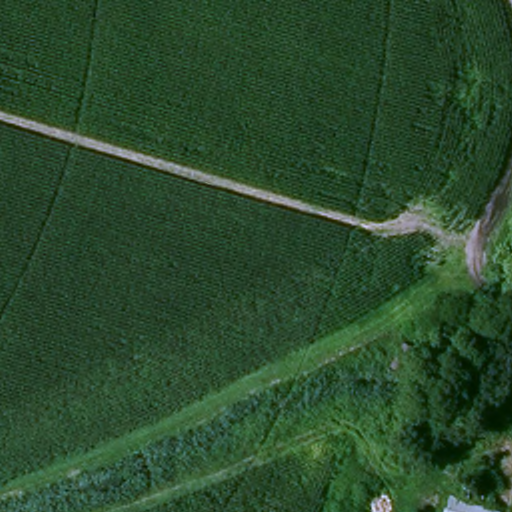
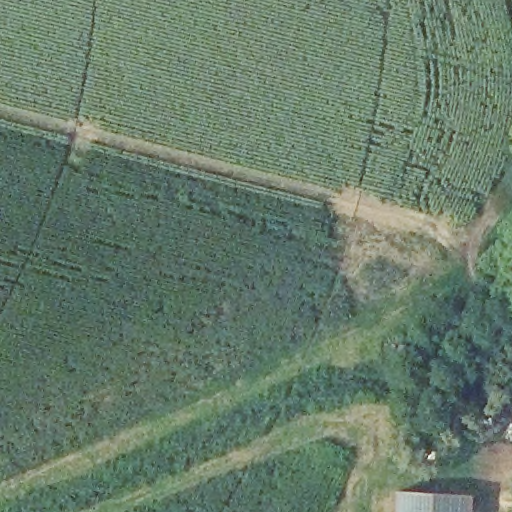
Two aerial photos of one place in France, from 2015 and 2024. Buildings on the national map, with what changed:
new [(477,495),(476,512),(398,512),(398,491),(477,495)]
demolished [(444,512),(451,492),(502,512),(444,512)]

